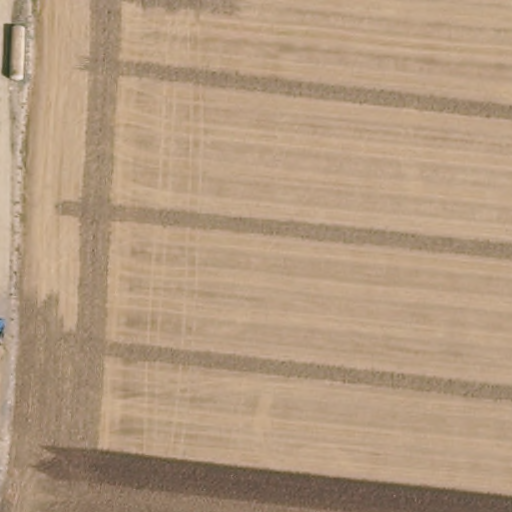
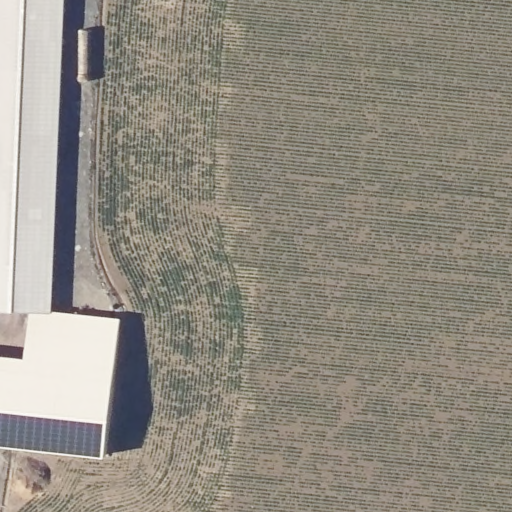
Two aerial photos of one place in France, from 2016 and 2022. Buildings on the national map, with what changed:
new [(54,310),(123,315),(108,456),(0,446),(0,354),(26,355),(32,311),(0,311),(0,0),(66,0),(54,310)]

